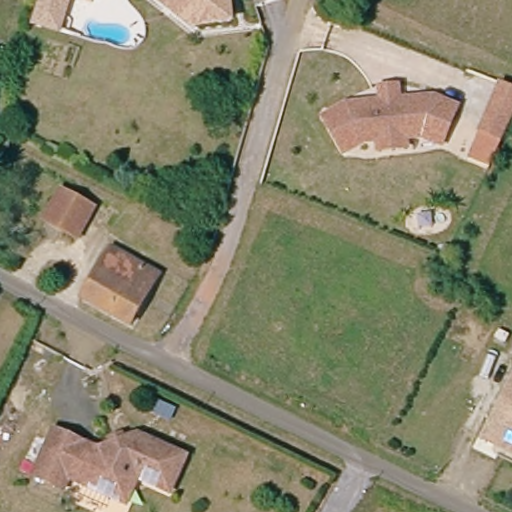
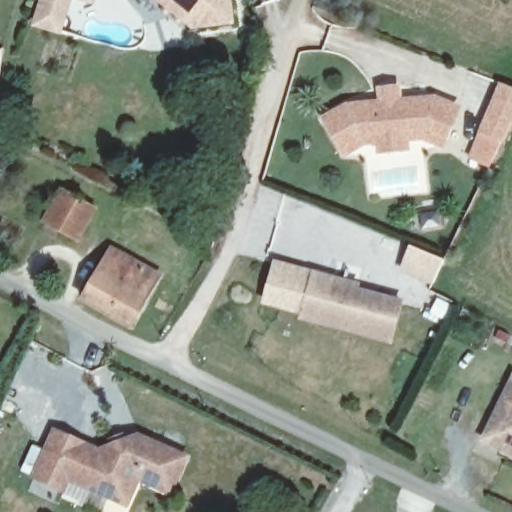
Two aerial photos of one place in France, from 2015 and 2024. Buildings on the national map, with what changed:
unchanged [(31,25),(39,0),(72,0),(61,36),(31,25)]
unchanged [(78,0),(95,0),(94,4),(78,0)]
unchanged [(191,28),(158,0),(227,0),(230,25),(191,28)]
unchanged [(500,82),(512,87),(512,119),(502,141),(477,133),(500,82)]
unchanged [(319,117),(347,102),(376,100),(375,86),(400,85),(400,96),(435,95),(461,105),(443,148),(423,139),(411,140),(410,151),(378,154),(377,143),(366,145),(342,158),(319,117)]
unchanged [(92,210),(77,236),(46,220),(60,194),(92,210)]
new [(410,244),(443,258),(432,279),(401,266),(410,244)]
unchanged [(110,250),(157,277),(149,295),(101,270),(110,250)]
new [(274,259),(313,270),(303,309),(263,298),(274,259)]
unchanged [(101,270),(149,295),(131,327),(83,302),(101,270)]
new [(313,270),(332,275),(357,281),(356,286),(401,298),(391,337),(302,315),(303,309),(313,270)]
unchanged [(480,440),(512,371),(512,457),(480,440)]
unchanged [(35,481),(46,452),(52,436),(82,448),(76,465),(65,492),(35,481)]
unchanged [(111,497),(84,485),(97,453),(137,438),(187,460),(171,497),(135,481),(126,503),(111,497)]

